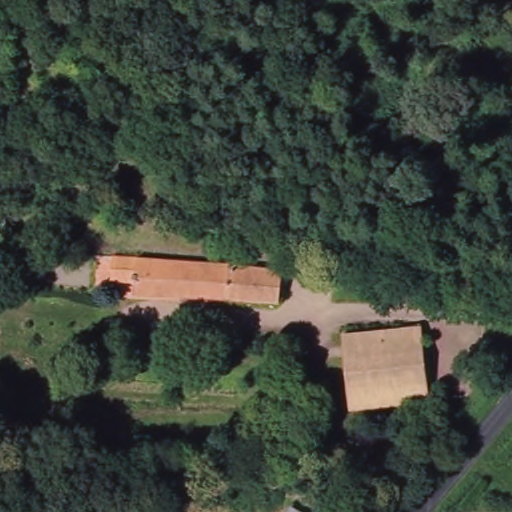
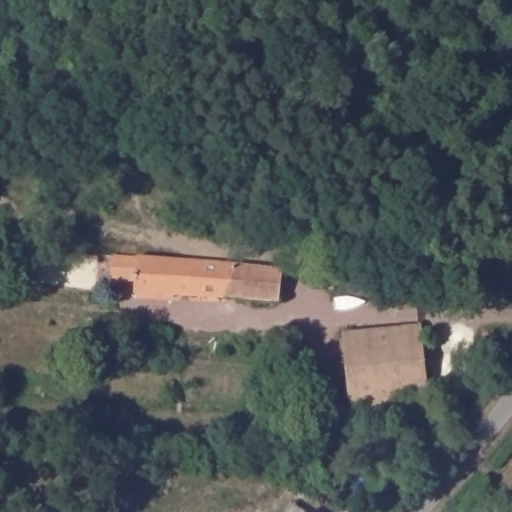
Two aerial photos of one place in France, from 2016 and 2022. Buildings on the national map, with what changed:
unchanged [(280,303),(137,294),(137,281),(116,280),(119,254),(139,255),(280,265),(280,303)]
unchanged [(421,325),(427,395),(354,403),(346,332),(421,325)]

